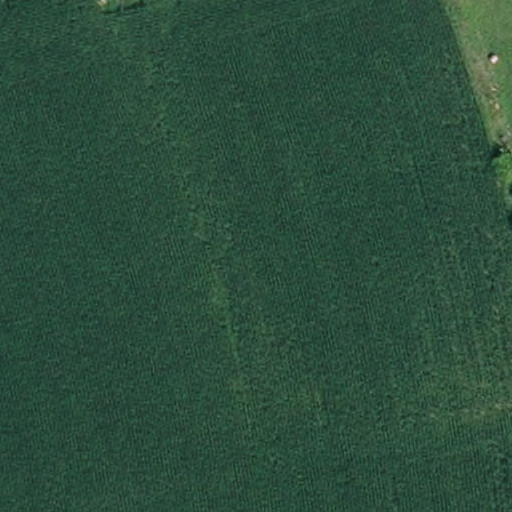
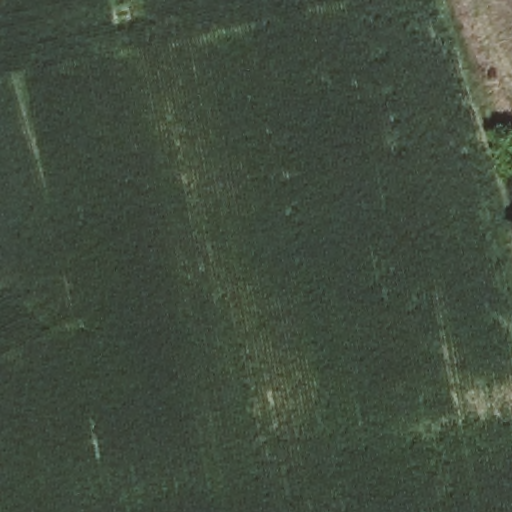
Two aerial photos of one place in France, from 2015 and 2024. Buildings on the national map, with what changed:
[]

